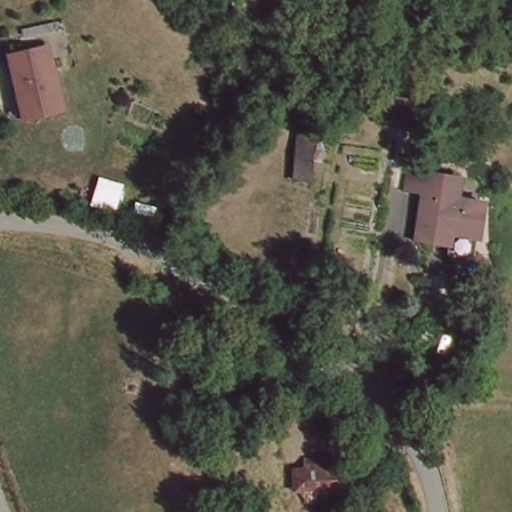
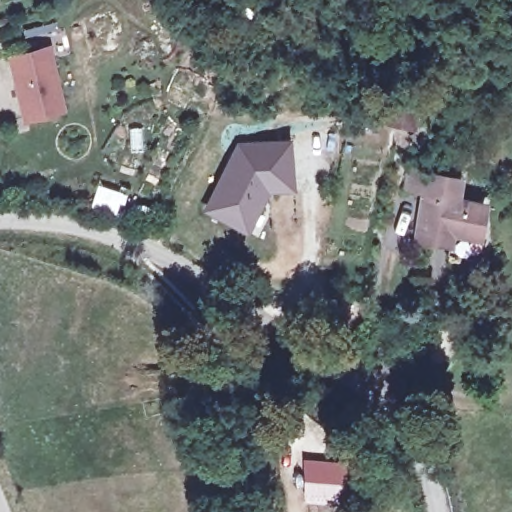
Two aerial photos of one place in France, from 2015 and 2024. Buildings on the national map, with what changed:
unchanged [(11,54),(48,44),(63,107),(24,116),(11,54)]
unchanged [(465,131),(457,155),(433,146),(442,123),(465,131)]
demolished [(318,179),(294,182),(293,130),(318,129),(318,179)]
new [(236,141),(292,139),(294,190),(269,191),(248,232),(202,209),(236,141)]
unchanged [(463,192),(482,198),(487,237),(417,243),(419,198),(411,187),(407,171),(463,173),(463,192)]
unchanged [(299,470),(346,472),(343,508),(296,506),(299,470)]

